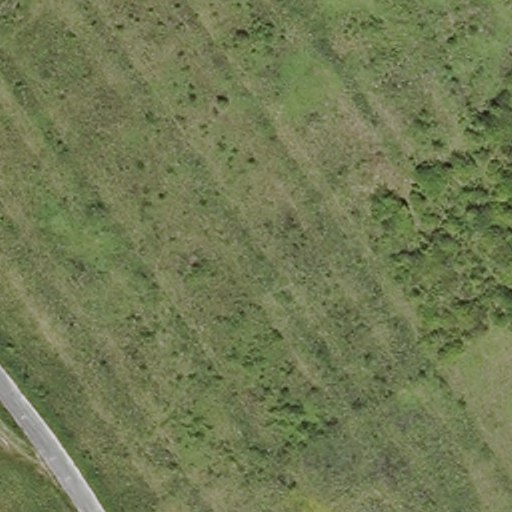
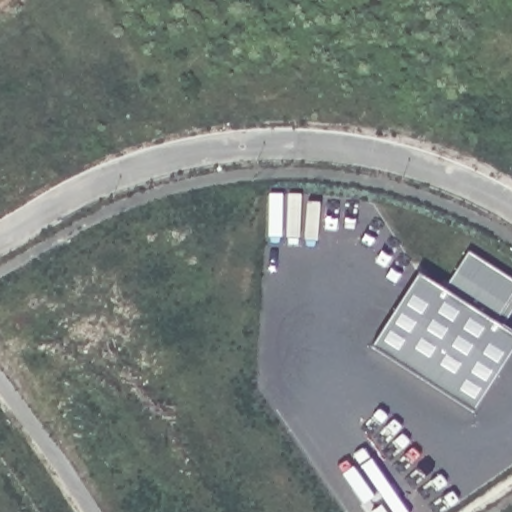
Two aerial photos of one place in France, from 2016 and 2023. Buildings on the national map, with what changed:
new [(512,333),(512,353),(474,412),(371,345),(418,272),(445,289),(469,250),(512,279),(512,318),(507,329),(512,333)]

